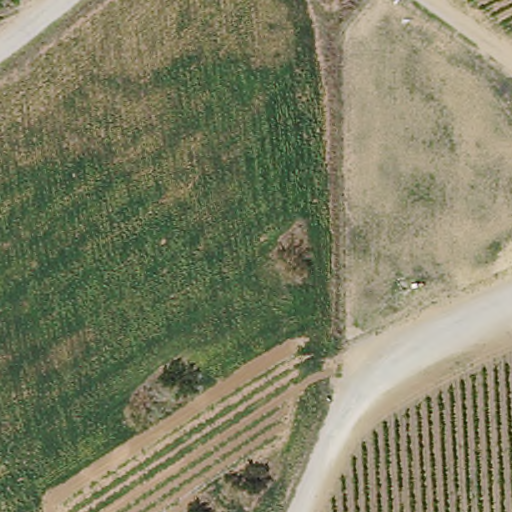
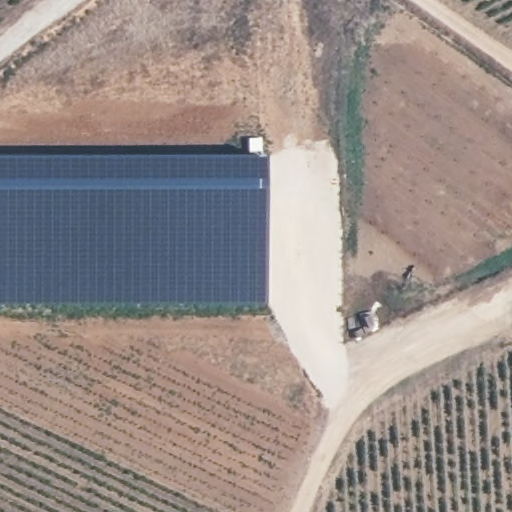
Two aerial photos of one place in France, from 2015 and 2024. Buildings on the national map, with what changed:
new [(0,305),(0,157),(268,157),(266,304),(0,305)]

